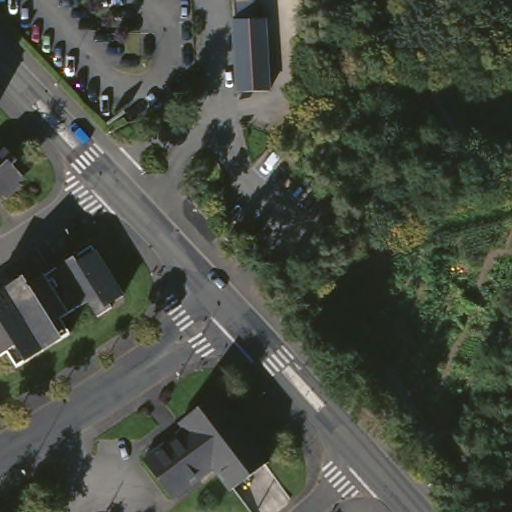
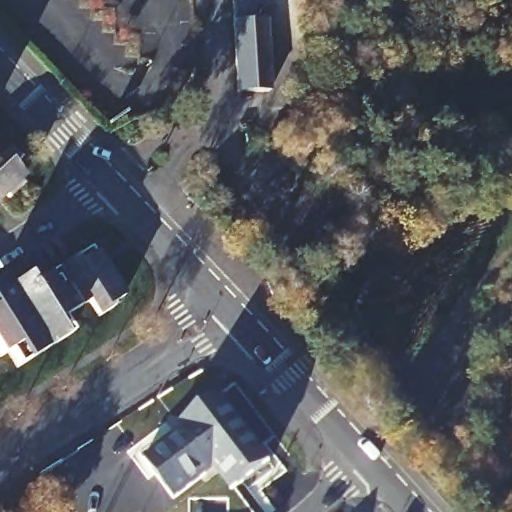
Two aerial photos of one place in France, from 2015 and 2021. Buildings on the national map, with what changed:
unchanged [(278,85),(246,87),(245,83),(241,14),(240,0),(263,0),(263,13),(274,12),(278,85)]
unchanged [(7,159),(19,148),(29,159),(24,164),(34,173),(0,207),(0,152),(7,159)]
unchanged [(19,270),(24,279),(36,272),(40,279),(102,242),(131,289),(118,298),(121,303),(122,304),(110,310),(100,294),(72,312),(81,327),(26,362),(16,346),(9,351),(5,345),(0,348),(0,281),(19,270)]
unchanged [(199,421),(195,415),(230,388),(282,454),(246,484),(229,462),(187,494),(157,453),(199,421)]

